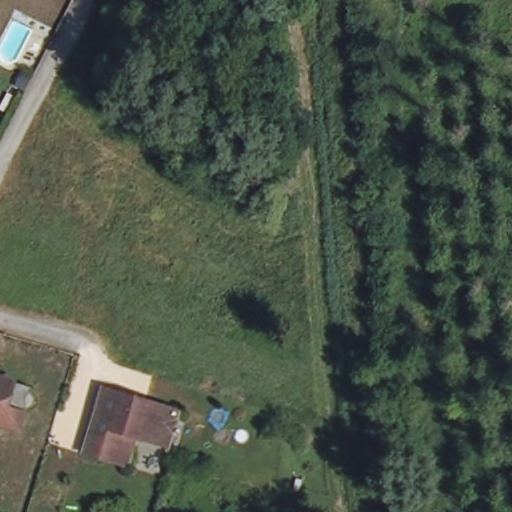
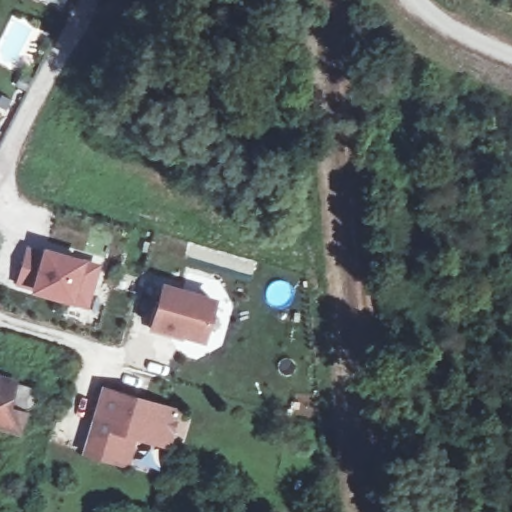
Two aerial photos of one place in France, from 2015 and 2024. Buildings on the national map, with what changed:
new [(42,247),(85,258),(100,263),(87,307),(72,303),(30,290),(15,285),(27,247),(42,247)]
new [(160,282),(215,296),(204,343),(182,338),(182,341),(149,332),(160,282)]
unchanged [(22,417),(16,417),(14,423),(10,434),(0,431),(0,382),(30,391),(22,417)]
unchanged [(109,463),(75,452),(96,387),(173,412),(162,447),(138,440),(129,470),(109,463)]

